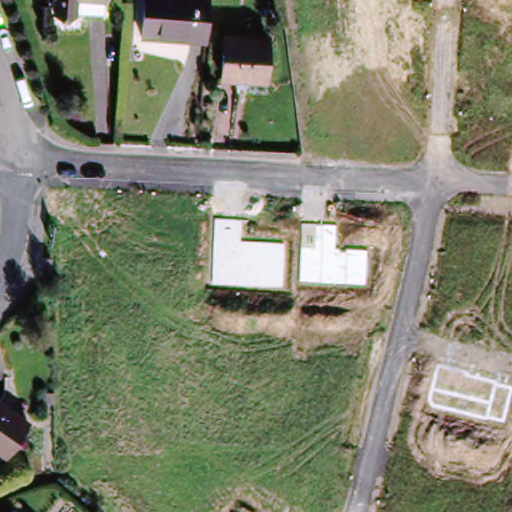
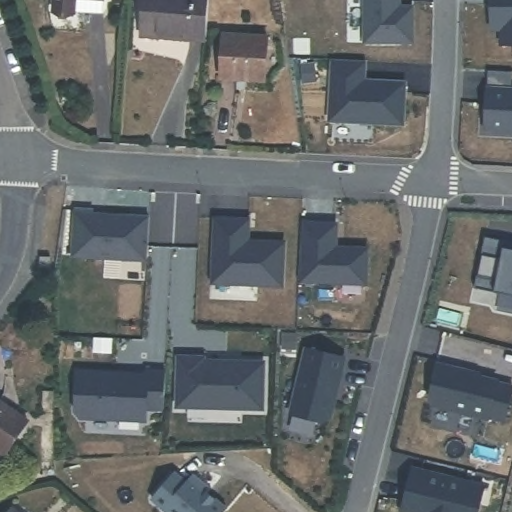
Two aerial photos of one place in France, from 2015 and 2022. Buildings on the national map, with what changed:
unchanged [(72,16),(50,16),(51,0),(73,0),(72,16)]
unchanged [(200,40),(138,38),(139,0),(201,0),(200,40)]
new [(363,0),(398,0),(398,6),(411,6),(412,42),(363,42),(363,0)]
new [(490,0),(512,0),(512,44),(500,44),(500,29),(490,29),(490,4),(490,0)]
unchanged [(215,85),(216,37),(263,39),(264,85),(215,85)]
new [(405,128),(331,125),(335,63),(367,65),(365,85),(407,87),(405,128)]
new [(487,133),(490,90),(512,91),(512,134),(487,133)]
new [(146,259),(71,255),(75,208),(91,209),(91,213),(149,216),(146,259)]
new [(214,217),(250,218),(250,240),(285,241),(283,286),(210,283),(214,217)]
new [(302,221),(338,222),(337,246),(370,248),(367,285),(300,283),(302,221)]
new [(505,241),(512,242),(512,295),(473,287),(484,236),(505,241)]
new [(305,347),(341,356),(338,371),(340,372),(330,417),(323,422),(288,413),(305,347)]
new [(177,356),(203,356),(203,360),(224,360),(224,363),(240,364),(240,361),(263,361),(262,408),(176,406),(177,356)]
new [(433,407),(428,400),(438,363),(480,373),(478,376),(512,384),(512,393),(505,422),(433,407)]
new [(76,370),(146,374),(146,370),(165,371),(162,409),(145,408),(145,420),(79,417),(74,411),(76,370)]
unchanged [(5,450),(0,447),(0,398),(27,421),(5,450)]
new [(483,485),(477,512),(401,512),(400,512),(411,467),(483,485)]
new [(186,482),(192,475),(205,486),(203,489),(226,508),(223,512),(167,512),(151,499),(174,472),(186,482)]
unchanged [(7,512),(11,507),(17,512),(7,512)]

